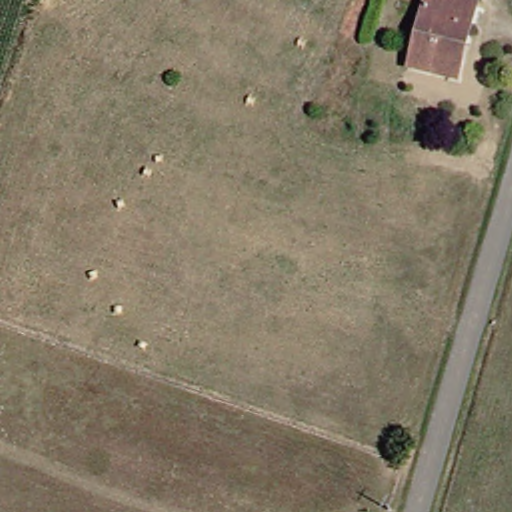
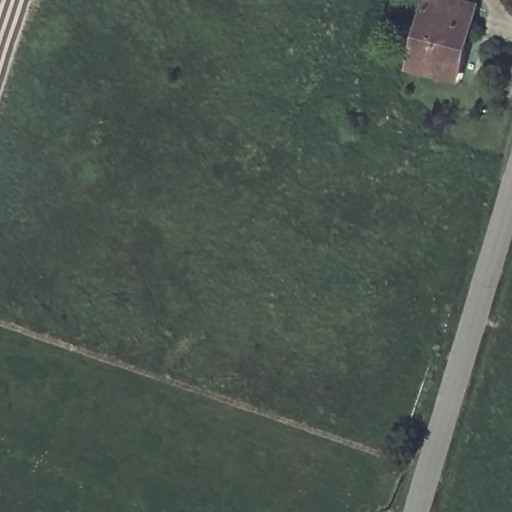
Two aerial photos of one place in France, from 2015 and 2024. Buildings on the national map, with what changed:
unchanged [(398,64),(417,0),(457,0),(467,4),(455,43),(445,78),(434,74),(398,64)]

